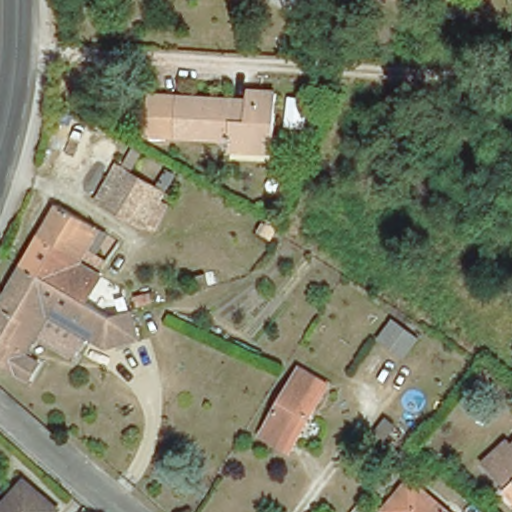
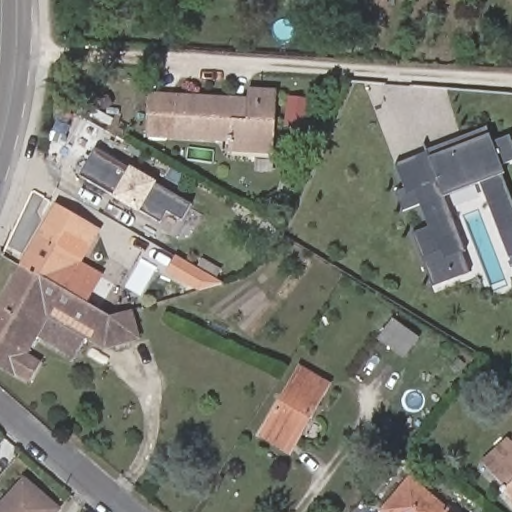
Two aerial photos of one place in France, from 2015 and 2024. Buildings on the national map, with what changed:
unchanged [(245,151),(229,150),(229,139),(147,135),(149,95),(247,99),(247,89),(276,91),(273,141),(272,152),(245,151)]
new [(512,142),(512,160),(500,165),(502,173),(512,198),(512,258),(510,259),(482,182),(445,196),(472,271),(433,286),(412,233),(428,226),(420,205),(403,211),(395,189),(402,186),(393,162),(427,149),(487,127),(493,142),(510,135),(512,142)]
unchanged [(168,199),(154,224),(146,220),(143,224),(109,204),(94,195),(115,157),(130,166),(155,181),(166,163),(175,168),(165,187),(161,195),(168,199)]
unchanged [(75,292),(24,262),(20,260),(38,229),(56,198),(100,224),(89,244),(107,254),(102,263),(82,252),(81,253),(79,258),(98,270),(82,296),(75,292)]
unchanged [(105,345),(84,333),(73,353),(36,331),(26,348),(40,356),(33,369),(26,365),(21,373),(0,362),(0,294),(20,260),(24,262),(75,292),(82,296),(83,297),(107,311),(132,305),(140,335),(105,345)]
unchanged [(420,336),(405,356),(379,337),(393,318),(420,336)]
unchanged [(327,383),(291,449),(261,433),(298,366),(327,383)]
unchanged [(507,439),(512,444),(512,492),(484,460),(507,439)]
unchanged [(48,512),(0,512),(0,501),(24,475),(56,504),(48,512)]
unchanged [(388,512),(385,509),(410,478),(450,512),(388,512)]

